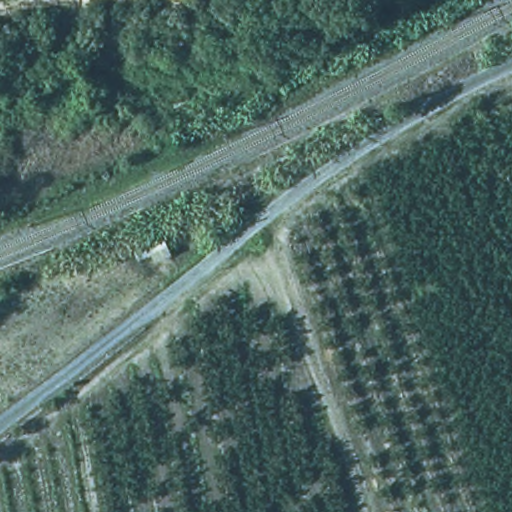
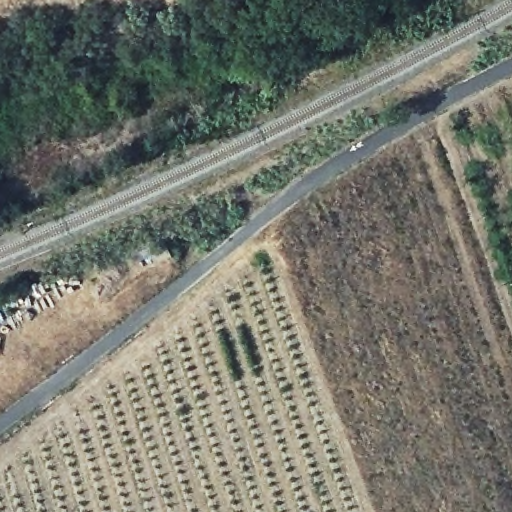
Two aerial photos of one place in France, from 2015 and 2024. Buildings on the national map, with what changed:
unchanged [(169,255),(153,264),(142,243),(159,237),(169,255)]

